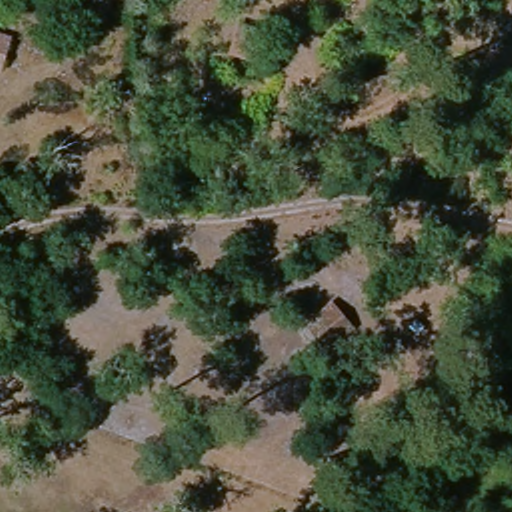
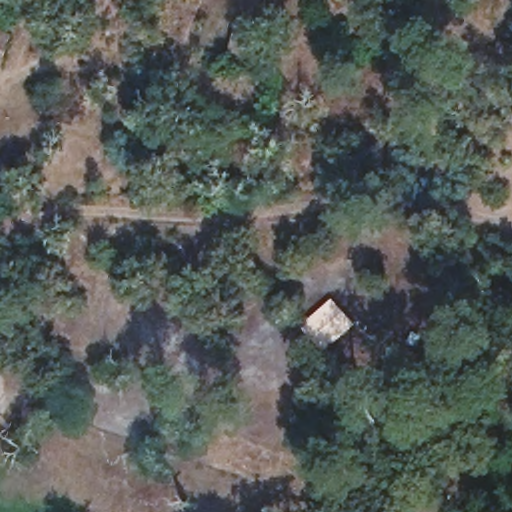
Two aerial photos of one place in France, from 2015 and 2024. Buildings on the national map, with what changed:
unchanged [(0,42),(8,45),(0,73),(0,42)]
unchanged [(505,73),(511,54),(512,54),(512,76),(505,73)]
unchanged [(503,101),(507,89),(512,91),(512,105),(503,101)]
unchanged [(336,315),(309,337),(288,311),(314,289),(336,315)]

